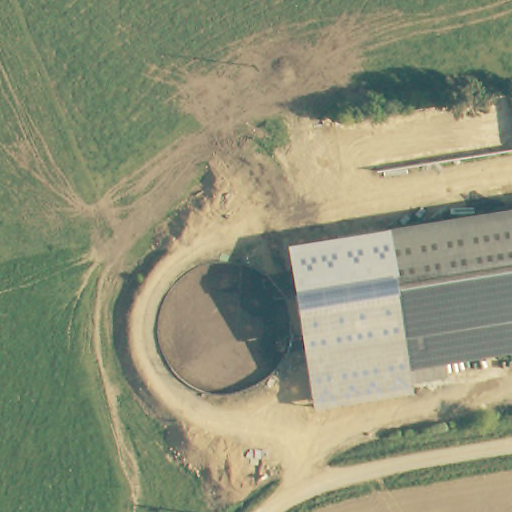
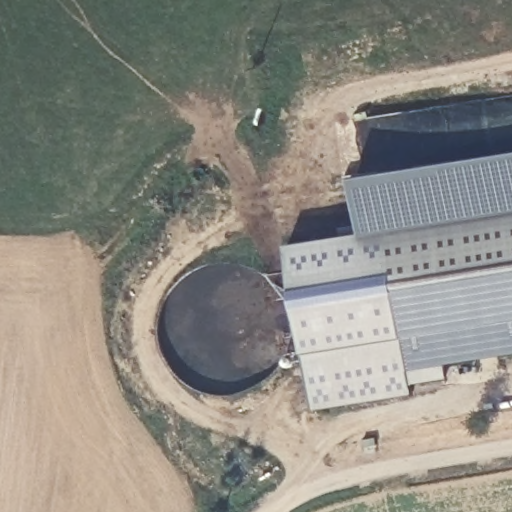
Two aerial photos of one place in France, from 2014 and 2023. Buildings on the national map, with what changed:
new [(363,241),(352,178),(512,153),(512,215),(386,237),(363,241)]
unchanged [(512,215),(512,357),(410,375),(386,237),(512,215)]
unchanged [(288,254),(386,237),(410,375),(413,393),(313,409),(288,254)]

